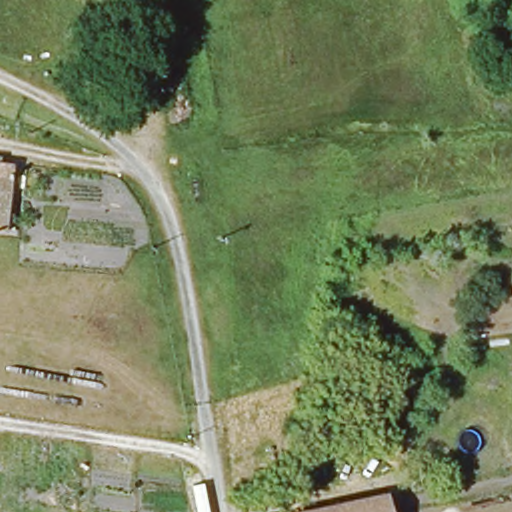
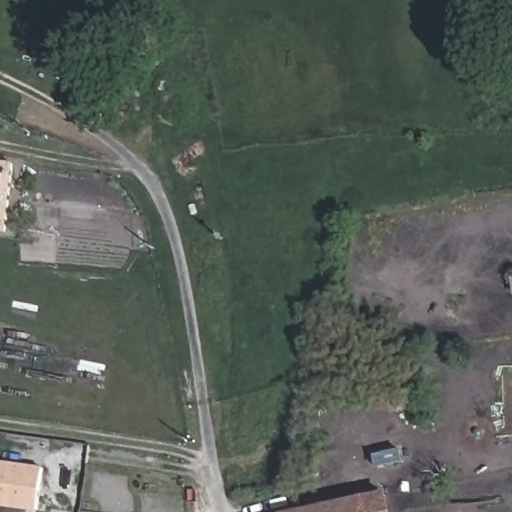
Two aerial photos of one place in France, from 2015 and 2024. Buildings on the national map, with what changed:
unchanged [(0,229),(0,160),(10,161),(4,230),(0,229)]
new [(27,512),(0,508),(0,461),(44,467),(37,512),(27,512)]
unchanged [(388,512),(326,512),(325,508),(383,494),(388,512)]
unchanged [(326,512),(301,512),(308,510),(325,508),(326,512)]

